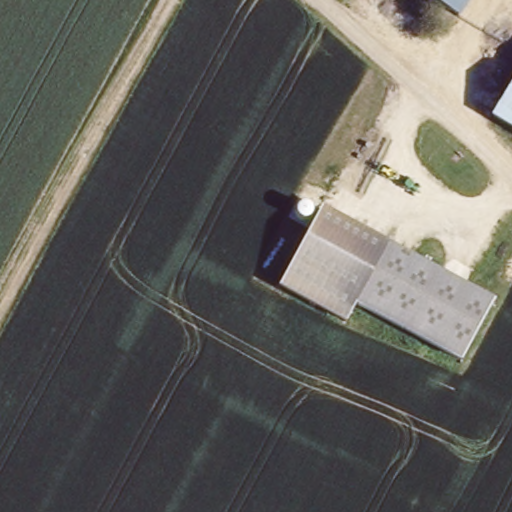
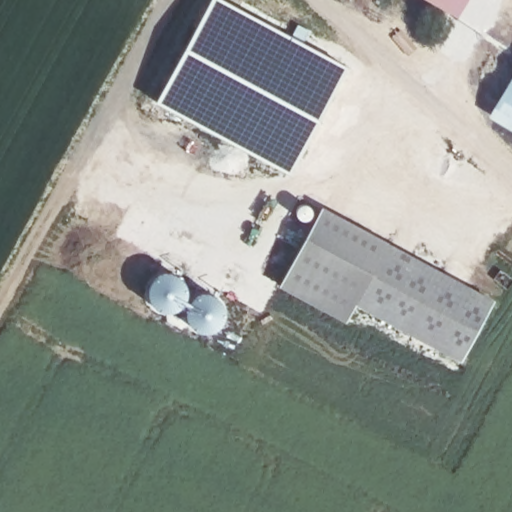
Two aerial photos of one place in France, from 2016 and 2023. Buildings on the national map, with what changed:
new [(210,0),(221,0),(350,67),(292,175),(156,102),(210,0)]
unchanged [(465,14),(443,0),(472,0),(465,14)]
unchanged [(512,85),(512,122),(496,111),(512,85)]
unchanged [(463,360),(359,306),(349,325),(279,287),(321,207),(494,299),(463,360)]

